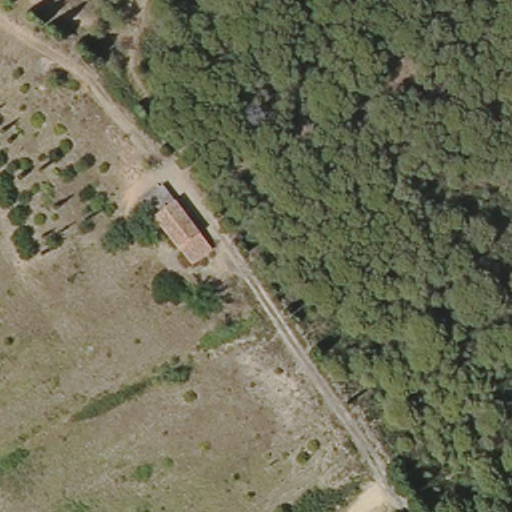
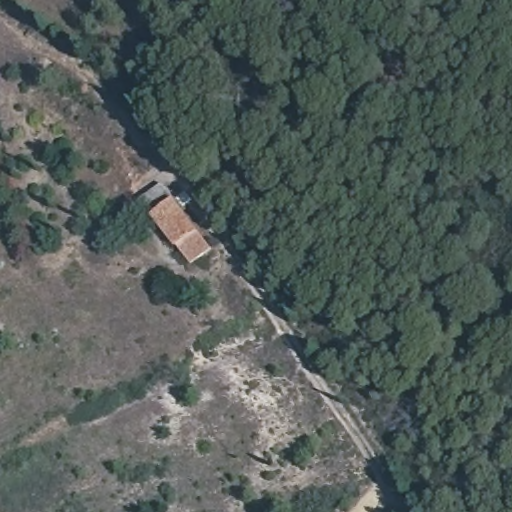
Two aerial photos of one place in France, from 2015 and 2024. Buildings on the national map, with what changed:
unchanged [(158,214),(144,197),(166,180),(179,197),(217,246),(197,261),(158,214)]

